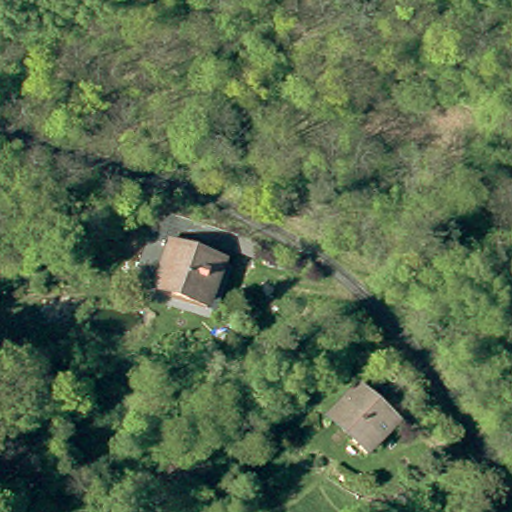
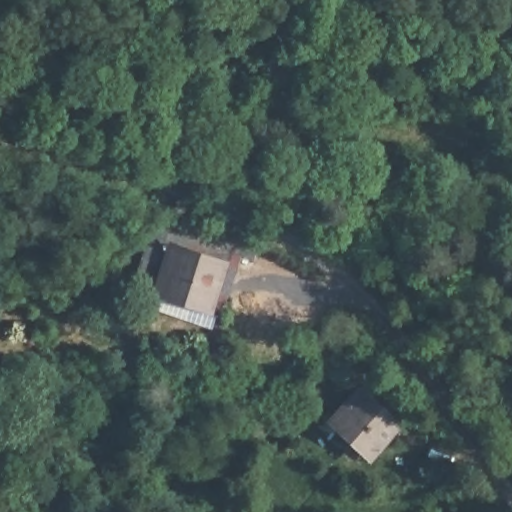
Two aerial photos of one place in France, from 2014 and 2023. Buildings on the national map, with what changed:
unchanged [(211,307),(160,291),(173,250),(223,266),(211,307)]
unchanged [(347,377),(319,361),(336,332),(362,350),(347,377)]
unchanged [(338,432),(363,402),(393,423),(390,427),(401,436),(377,465),(338,432)]

